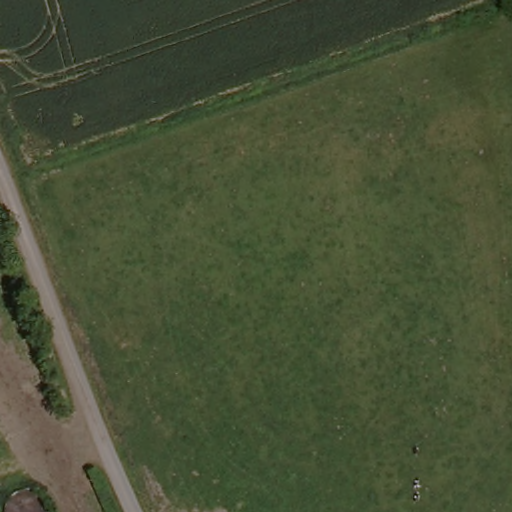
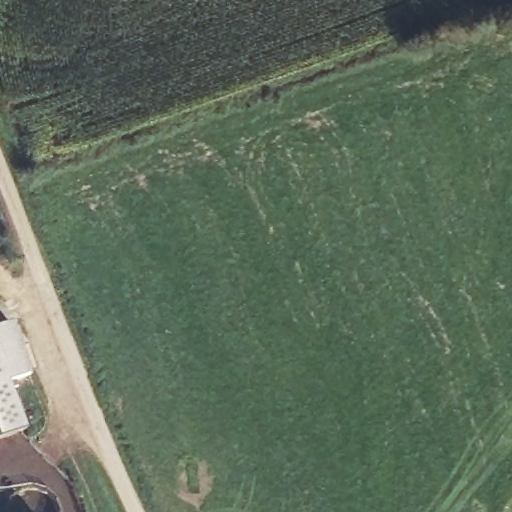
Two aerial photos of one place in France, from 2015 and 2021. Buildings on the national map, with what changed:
new [(30,373),(6,382),(22,429),(0,437),(0,324),(11,320),(30,373)]

